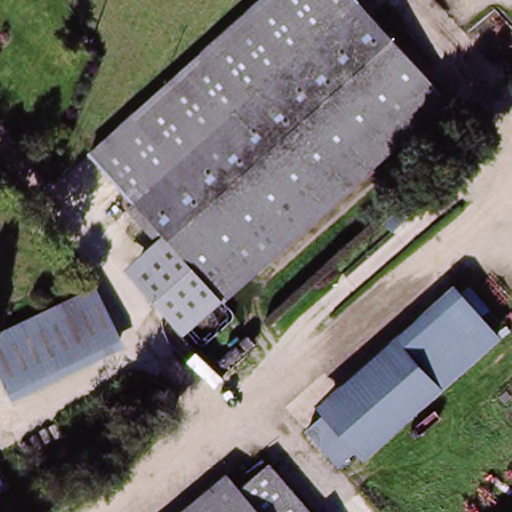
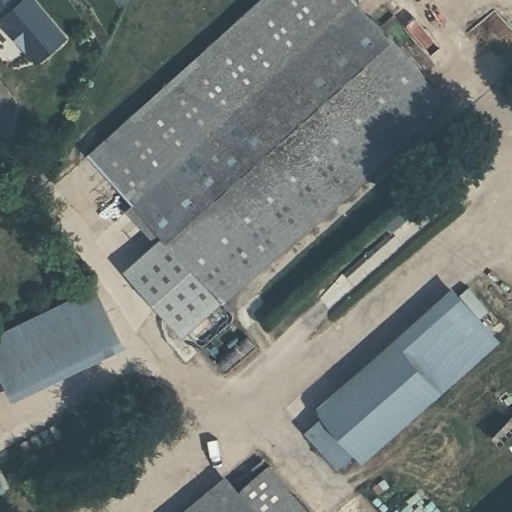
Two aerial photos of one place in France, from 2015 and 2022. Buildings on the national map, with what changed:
new [(69,39),(36,65),(0,20),(0,0),(37,0),(69,39)]
unchanged [(89,155),(260,0),(355,0),(441,94),(181,330),(121,265),(145,244),(116,212),(129,200),(89,155)]
unchanged [(500,334),(359,459),(316,414),(456,286),(500,334)]
unchanged [(0,344),(93,292),(121,343),(14,402),(0,376),(0,344)]
unchanged [(310,512),(167,512),(244,441),(310,512)]
unchanged [(0,493),(0,481),(5,490),(0,493)]

